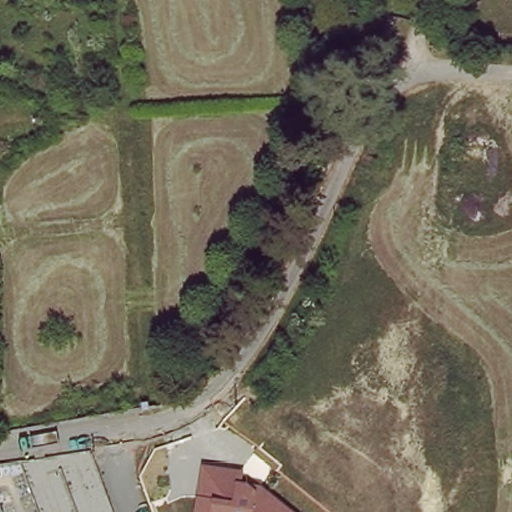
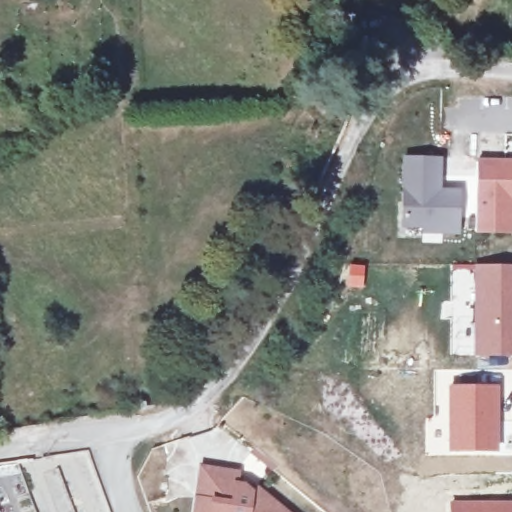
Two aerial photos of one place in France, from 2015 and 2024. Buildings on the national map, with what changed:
new [(441,153),(441,186),(464,186),(463,226),(402,228),(403,154),(441,153)]
new [(474,236),(476,159),(512,160),(512,236),(474,236)]
new [(477,265),(512,265),(512,355),(476,353),(477,265)]
new [(451,449),(451,386),(495,386),(495,449),(451,449)]
unchanged [(235,480),(253,483),(288,512),(187,512),(191,464),(236,468),(235,480)]
new [(512,500),(512,512),(449,512),(449,500),(512,500)]

